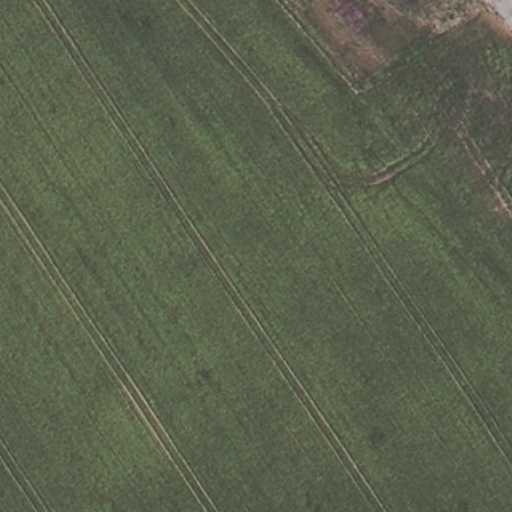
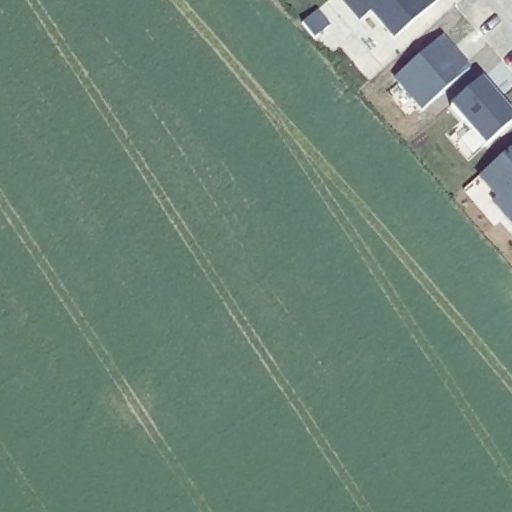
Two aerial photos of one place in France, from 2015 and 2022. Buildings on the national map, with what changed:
new [(439,3),(396,42),(371,13),(360,23),(341,0),(436,0),(439,3)]
new [(447,35),(471,64),(423,106),(396,76),(447,35)]
new [(484,76),(512,109),(512,119),(486,139),(452,102),(484,76)]
new [(512,146),(512,221),(494,199),(499,196),(481,175),(512,146)]

